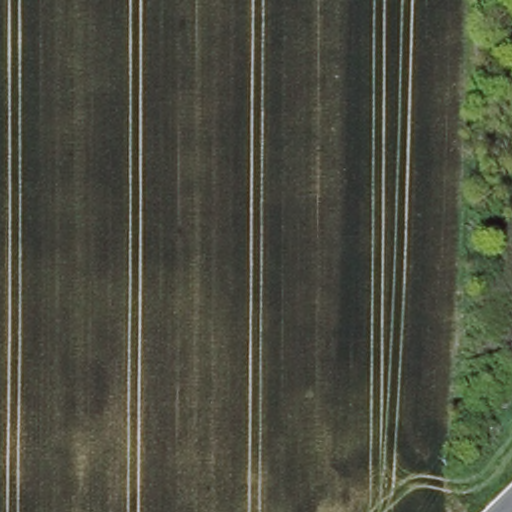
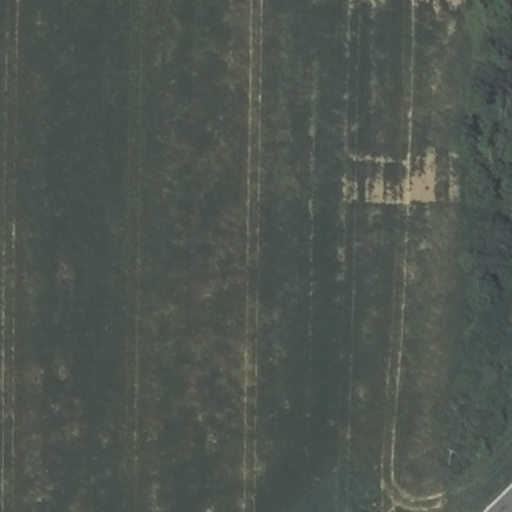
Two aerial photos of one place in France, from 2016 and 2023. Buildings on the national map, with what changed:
[]

